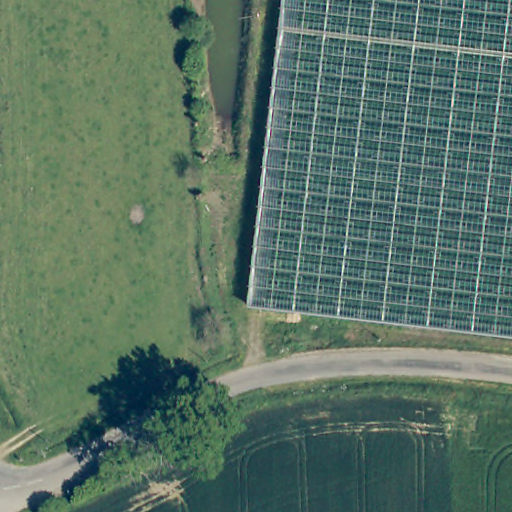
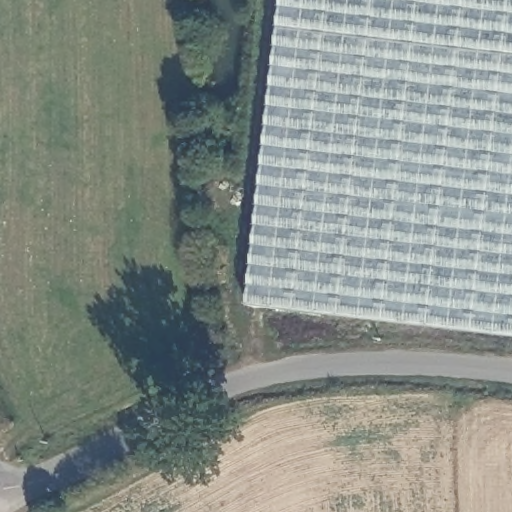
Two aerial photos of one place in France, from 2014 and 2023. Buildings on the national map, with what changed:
unchanged [(290,0),(512,0),(512,335),(253,305),(290,0)]

